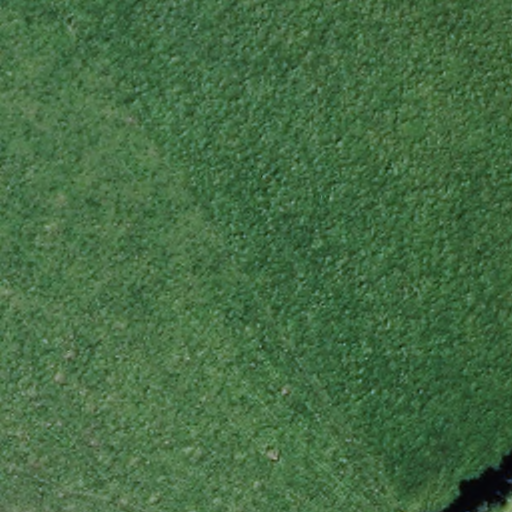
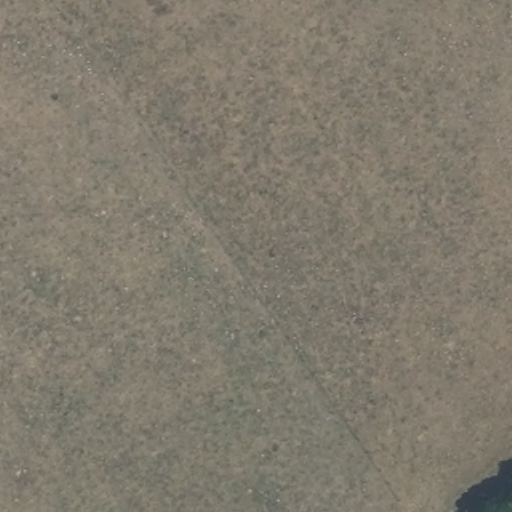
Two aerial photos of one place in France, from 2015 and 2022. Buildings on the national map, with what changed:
[]

